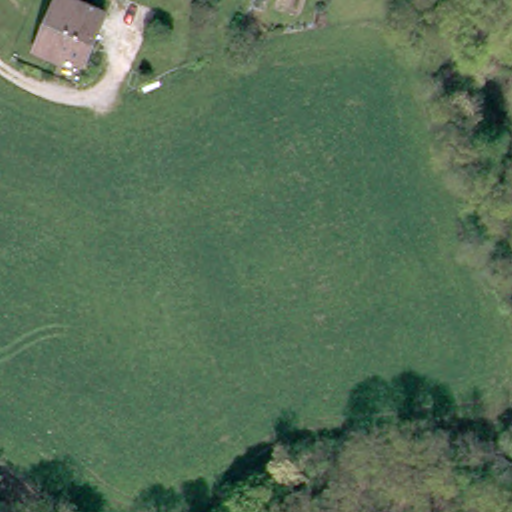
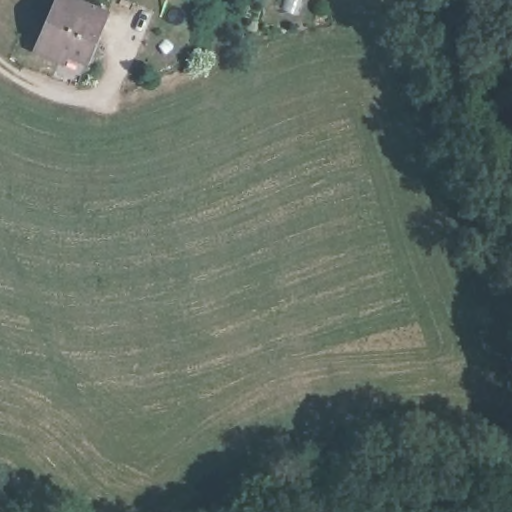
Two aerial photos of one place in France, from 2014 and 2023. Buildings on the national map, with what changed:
unchanged [(62,62),(37,51),(60,0),(82,0),(110,13),(88,61),(67,52),(62,62)]

